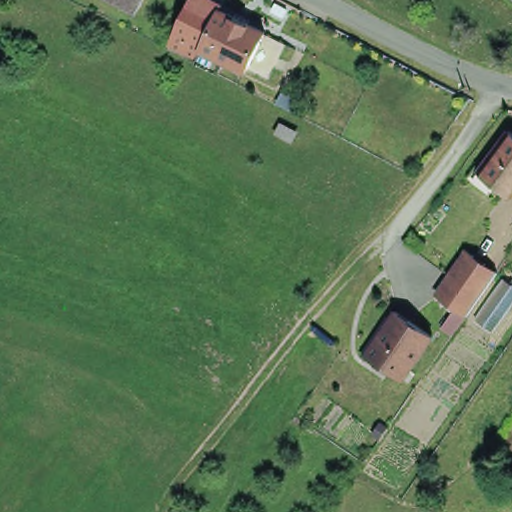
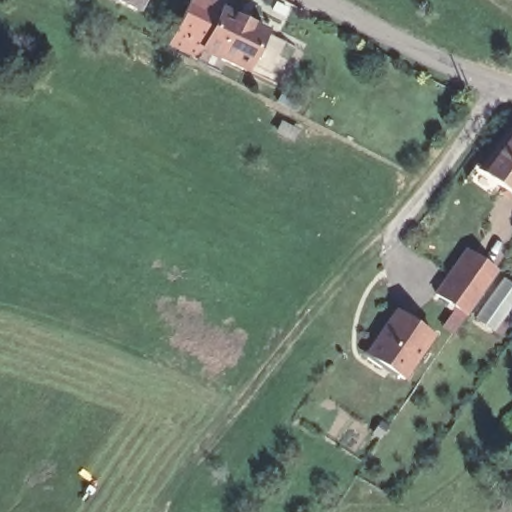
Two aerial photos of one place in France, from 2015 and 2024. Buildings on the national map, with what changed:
unchanged [(139,14),(112,0),(146,0),(139,14)]
unchanged [(193,57),(185,53),(175,47),(178,39),(197,2),(225,16),(269,37),(250,75),(206,53),(202,61),(193,57)]
unchanged [(472,185),(482,173),(485,175),(487,176),(512,143),(512,199),(502,192),(495,202),(475,187),(472,185)]
unchanged [(426,243),(418,253),(415,251),(402,242),(412,231),(423,240),(426,243)]
unchanged [(450,276),(467,252),(470,255),(497,273),(479,298),(467,316),(437,295),(450,276)]
unchanged [(370,356),(374,350),(371,347),(382,332),(384,334),(395,317),(433,342),(403,385),(392,377),(389,380),(388,379),(390,376),(382,370),(385,366),(370,356)]

